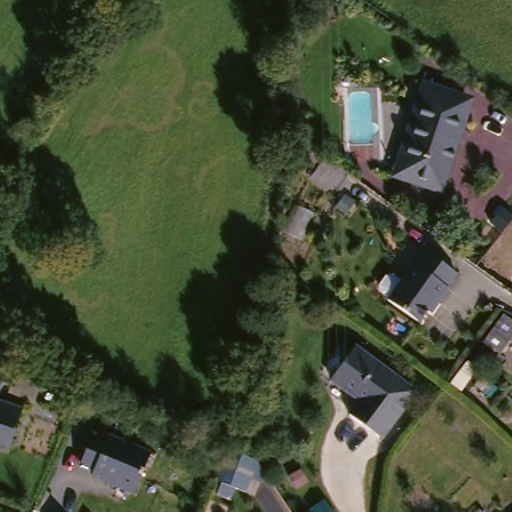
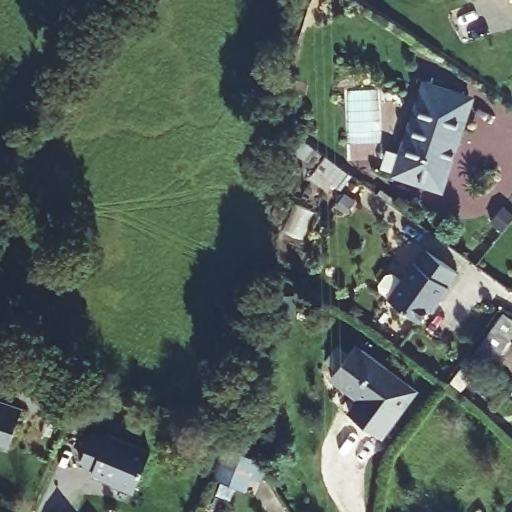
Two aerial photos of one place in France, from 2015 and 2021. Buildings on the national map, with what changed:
unchanged [(418,81),(473,96),(441,198),(385,181),(418,81)]
unchanged [(345,175),(334,189),(311,172),(322,158),(345,175)]
unchanged [(414,260),(416,262),(428,249),(456,274),(444,287),(446,289),(434,302),(431,300),(413,319),(384,293),(414,260)]
unchanged [(503,326),(479,353),(461,342),(484,314),(503,326)]
unchanged [(417,391),(382,437),(350,413),(361,399),(333,378),(357,346),(417,391)]
unchanged [(19,415),(6,452),(0,450),(0,408),(19,415)]
unchanged [(148,455),(133,499),(69,467),(82,439),(102,445),(103,439),(148,455)]
unchanged [(233,461),(222,490),(195,476),(207,451),(233,461)]

